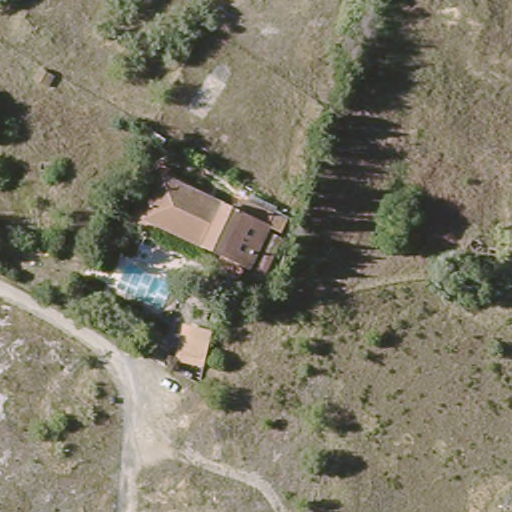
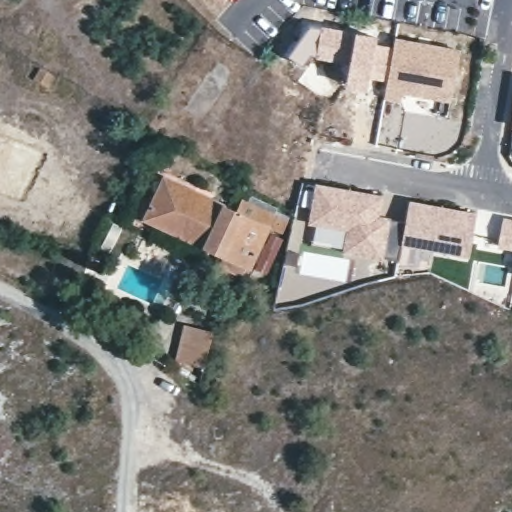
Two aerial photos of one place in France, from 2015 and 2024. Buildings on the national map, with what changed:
new [(347,64),(313,57),(310,56),(303,65),(287,56),(308,22),(320,25),(353,32),(347,64)]
new [(347,64),(353,32),(377,36),(377,41),(392,45),(385,81),(371,77),(367,91),(345,86),(347,64)]
new [(385,81),(392,45),(394,36),(461,49),(451,103),(403,95),(401,102),(382,99),(385,81)]
new [(512,121),(512,127),(511,127),(512,121)]
unchanged [(155,178),(258,217),(242,260),(140,220),(155,178)]
new [(315,182),(385,195),(381,215),(392,217),(383,261),(341,255),(342,247),(312,241),(315,226),(307,224),(315,182)]
new [(247,201),(250,195),(277,207),(276,210),(289,216),(283,234),(271,227),(252,270),(245,267),(240,277),(220,266),(222,258),(203,250),(205,245),(242,260),(258,217),(238,209),(242,199),(247,201)]
new [(467,257),(400,246),(409,200),(477,212),(467,257)]
new [(503,217),(512,219),(512,250),(497,247),(503,217)]
unchanged [(178,363),(184,330),(208,338),(200,369),(178,363)]

